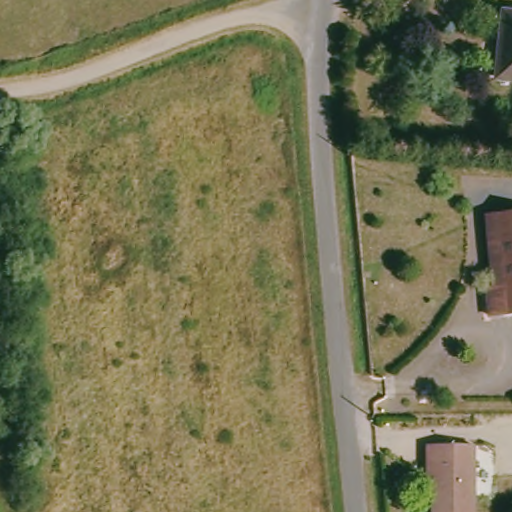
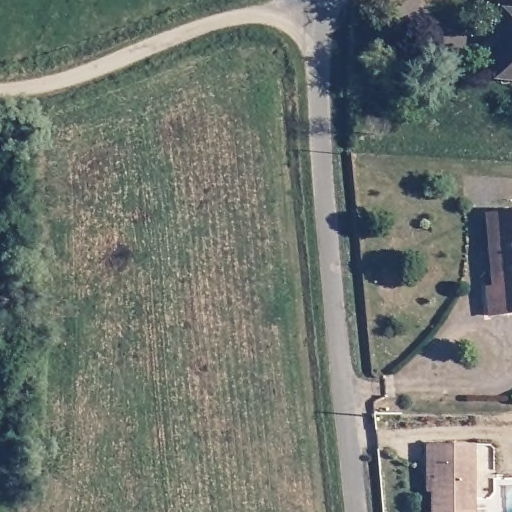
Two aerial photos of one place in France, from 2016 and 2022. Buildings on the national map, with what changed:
unchanged [(512,15),(512,78),(498,77),(505,14),(512,15)]
unchanged [(512,310),(482,313),(481,286),(491,285),(485,210),(512,208),(512,310)]
unchanged [(430,494),(430,471),(424,470),(425,444),(471,445),(471,512),(427,512),(427,494),(430,494)]

